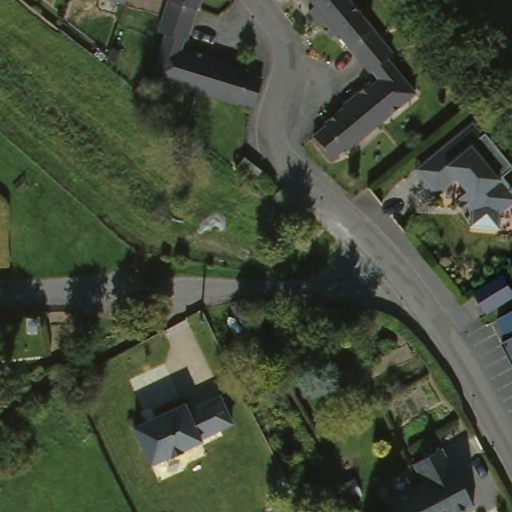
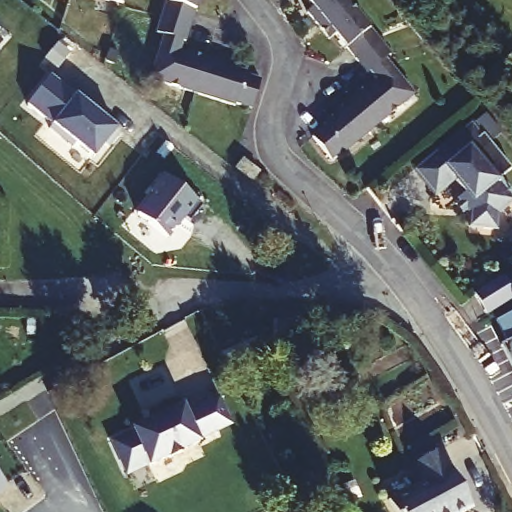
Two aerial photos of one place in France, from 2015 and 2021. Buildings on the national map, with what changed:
unchanged [(242,100),(203,89),(203,88),(156,73),(169,29),(161,25),(166,10),(169,0),(201,0),(196,18),(191,35),(188,34),(185,45),(193,47),(195,45),(215,50),(227,54),(226,56),(251,64),(250,67),(266,72),(257,100),(244,96),(242,100)]
unchanged [(374,85),(379,80),(372,71),(370,72),(360,60),(339,34),(333,37),(322,22),(312,9),(318,5),(314,0),(352,0),(384,42),(393,55),(388,59),(414,95),(377,124),(356,97),(372,84),(374,85)]
new [(51,75),(121,131),(109,147),(105,144),(94,157),(76,144),(73,147),(50,130),(53,125),(28,105),(51,75)]
unchanged [(346,107),(345,105),(356,97),(377,124),(345,150),(343,147),(331,156),(314,134),(323,125),(346,107)]
unchanged [(469,215),(459,200),(465,195),(454,181),(434,197),(414,171),(442,151),(474,126),(483,139),(485,138),(512,174),(501,182),(512,197),(512,200),(511,201),(512,203),(512,207),(497,218),(496,227),(495,234),(488,233),(467,230),(469,215)]
unchanged [(241,156),(256,166),(257,167),(249,176),(234,165),(241,156)]
new [(154,193),(151,190),(164,174),(203,205),(191,221),(185,216),(168,237),(138,214),(154,193)]
unchanged [(507,278),(512,287),(512,302),(490,316),(478,296),(507,278)]
unchanged [(502,345),(508,342),(498,320),(512,313),(512,364),(502,345)]
unchanged [(125,470),(106,433),(135,421),(187,398),(190,405),(222,391),(234,417),(203,432),(204,435),(184,443),(184,446),(171,452),(170,450),(161,455),(151,458),(125,470)]
unchanged [(441,446),(451,465),(453,465),(474,506),(462,512),(396,512),(389,496),(422,480),(412,461),(441,446)]
new [(0,490),(0,476),(7,485),(0,490)]

